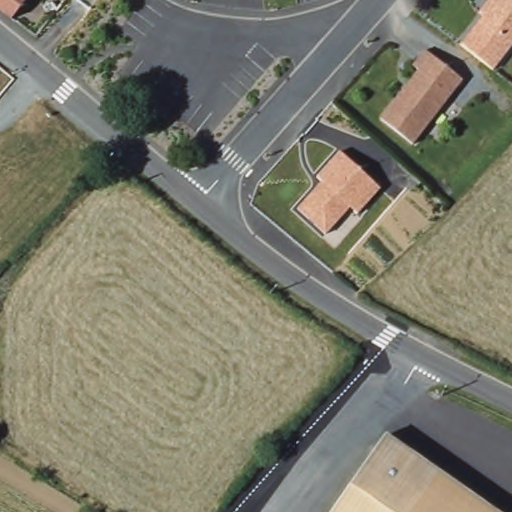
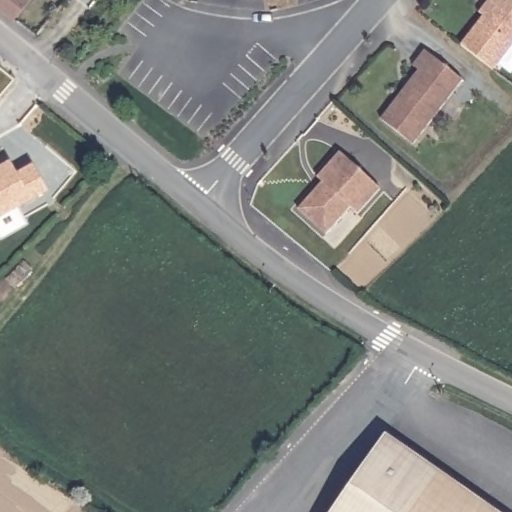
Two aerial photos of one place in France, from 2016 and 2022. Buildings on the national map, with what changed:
unchanged [(21,4),(10,17),(9,16),(0,10),(0,0),(24,0),(21,4)]
unchanged [(54,9),(47,0),(61,0),(54,9)]
unchanged [(489,0),(512,0),(512,47),(494,70),(460,45),(482,16),(478,14),(489,0)]
unchanged [(411,67),(424,51),(461,81),(411,145),(380,120),(397,97),(406,85),(417,71),(411,67)]
unchanged [(323,180),(318,175),(340,150),(381,186),(359,211),(351,205),(327,231),(299,206),(320,184),(323,180)]
new [(11,165),(17,177),(34,169),(49,195),(0,222),(0,171),(11,165)]
unchanged [(501,512),(329,512),(386,432),(501,512)]

